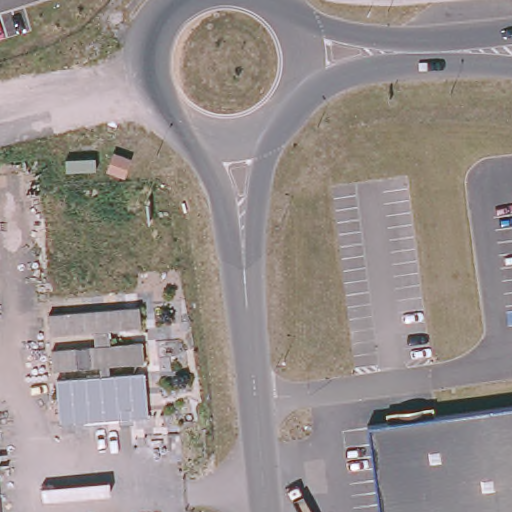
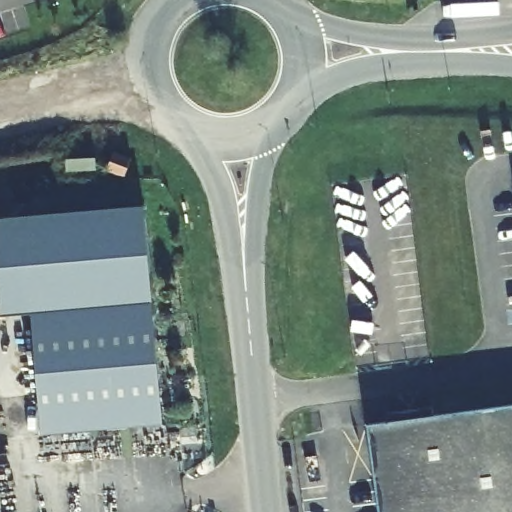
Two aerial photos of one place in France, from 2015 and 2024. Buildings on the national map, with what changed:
new [(145,204),(161,437),(37,445),(22,315),(3,315),(0,281),(0,218),(145,204)]
demolished [(136,311),(137,332),(49,339),(47,318),(136,311)]
demolished [(139,347),(140,367),(52,374),(50,354),(139,347)]
demolished [(142,383),(144,422),(59,429),(56,389),(142,383)]
unchanged [(387,412),(434,406),(435,414),(512,404),(512,512),(379,512),(367,424),(387,420),(387,412)]

